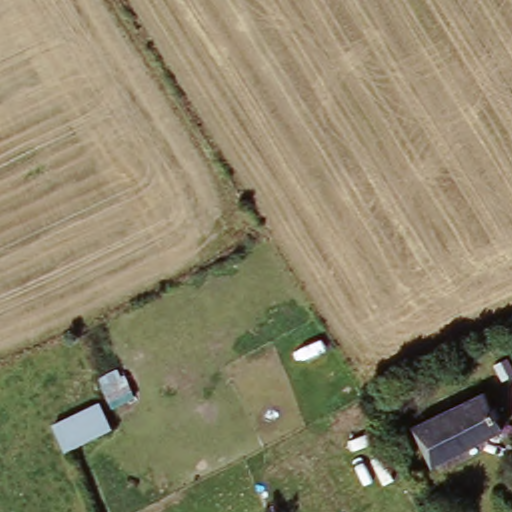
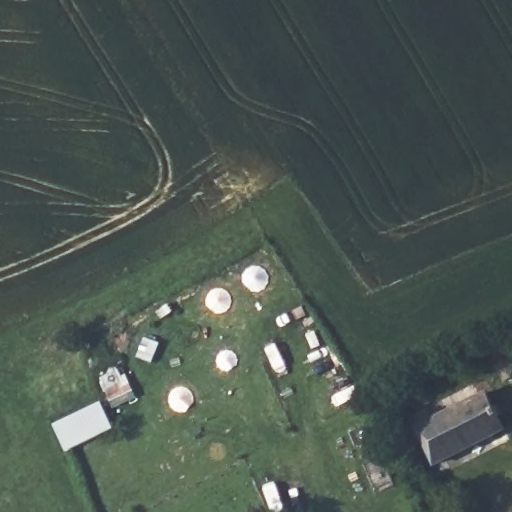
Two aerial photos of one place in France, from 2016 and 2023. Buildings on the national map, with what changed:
unchanged [(415,421),(481,390),(500,425),(435,456),(415,421)]
unchanged [(101,399),(116,427),(80,446),(69,451),(55,422),(101,399)]

